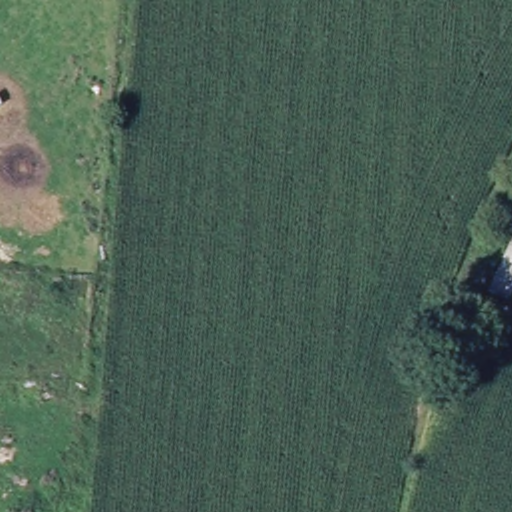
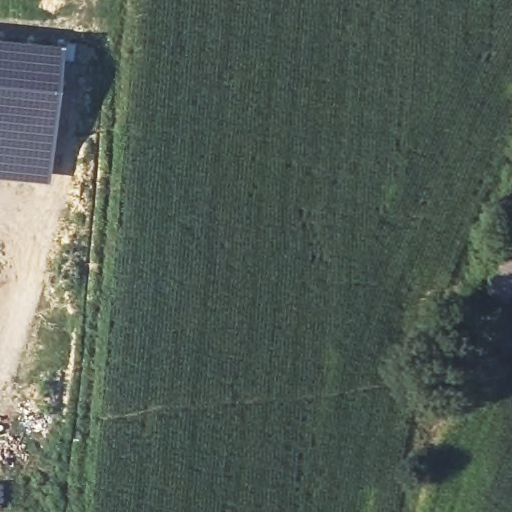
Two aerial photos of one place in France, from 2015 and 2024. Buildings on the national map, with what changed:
new [(64,40),(49,182),(0,177),(0,33),(64,40)]
unchanged [(512,240),(512,301),(488,293),(512,240)]

